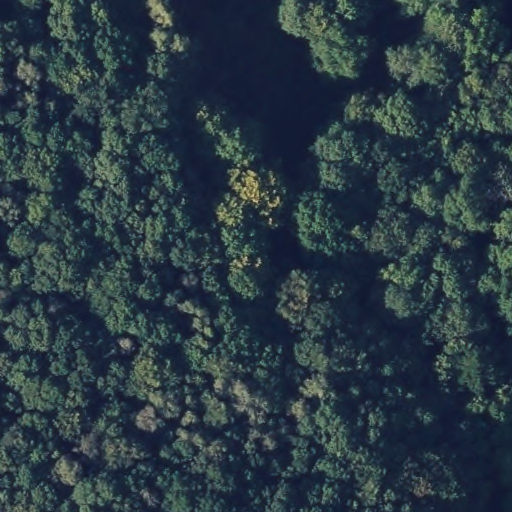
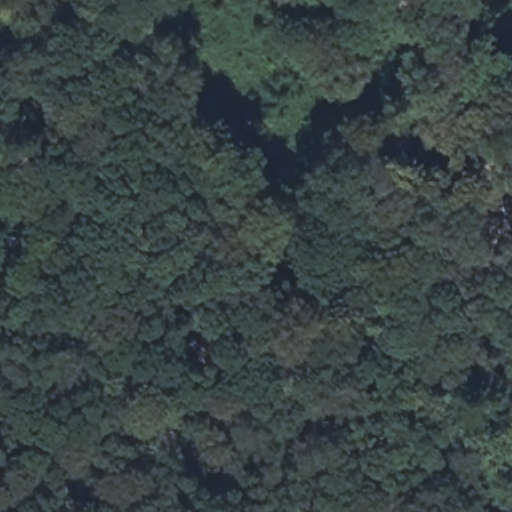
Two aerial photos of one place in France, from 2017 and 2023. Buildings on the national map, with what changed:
[]

